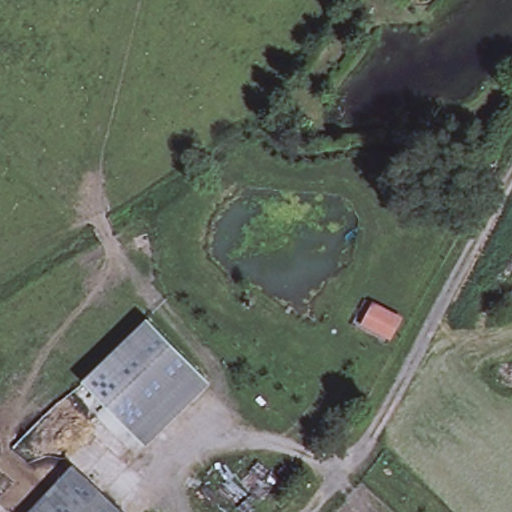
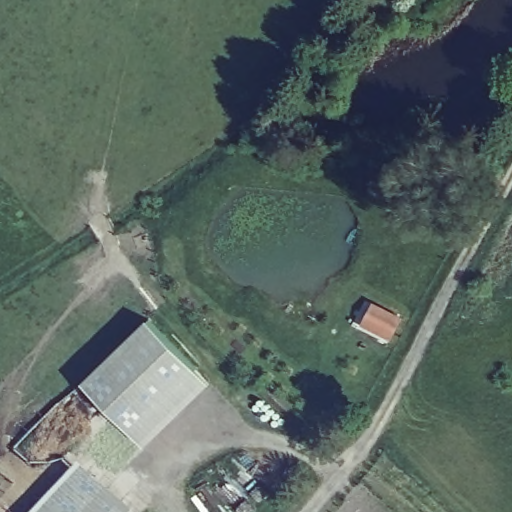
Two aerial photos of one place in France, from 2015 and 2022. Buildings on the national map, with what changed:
unchanged [(372,300),(402,316),(390,339),(360,324),(372,300)]
unchanged [(147,317),(210,382),(145,444),(84,380),(147,317)]
unchanged [(73,463),(125,512),(27,512),(73,463)]

